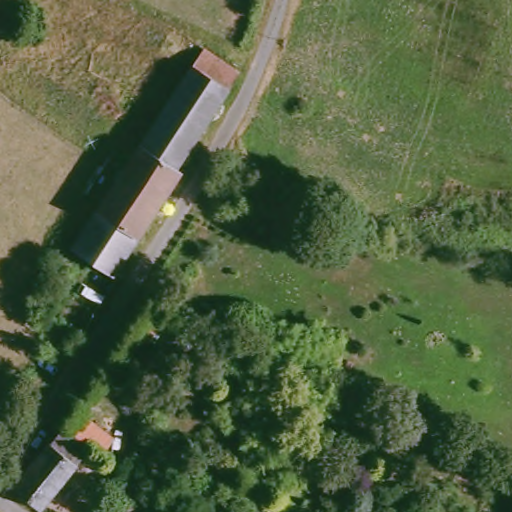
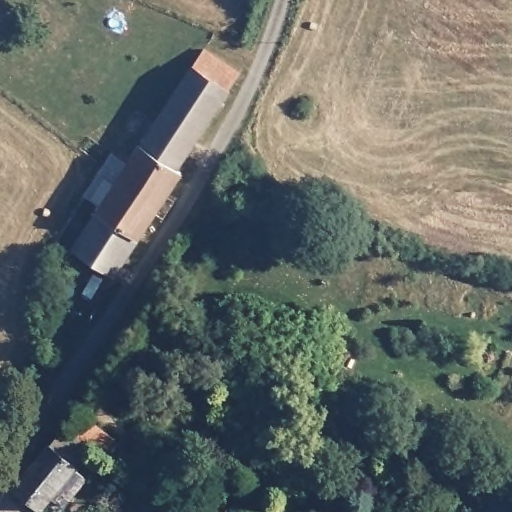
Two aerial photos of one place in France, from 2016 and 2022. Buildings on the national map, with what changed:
unchanged [(182,169),(186,171),(167,205),(122,175),(201,49),(241,74),(182,169)]
unchanged [(164,210),(157,207),(141,237),(118,275),(75,247),(120,176),(122,175),(167,205),(164,210)]
unchanged [(261,182),(257,197),(231,190),(236,175),(261,182)]
unchanged [(98,447),(51,510),(19,490),(66,424),(98,447)]

